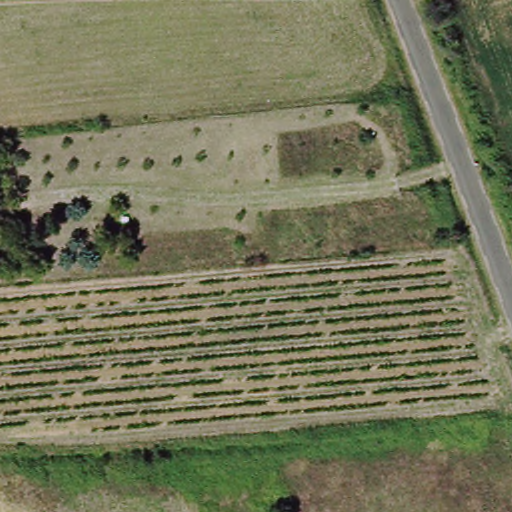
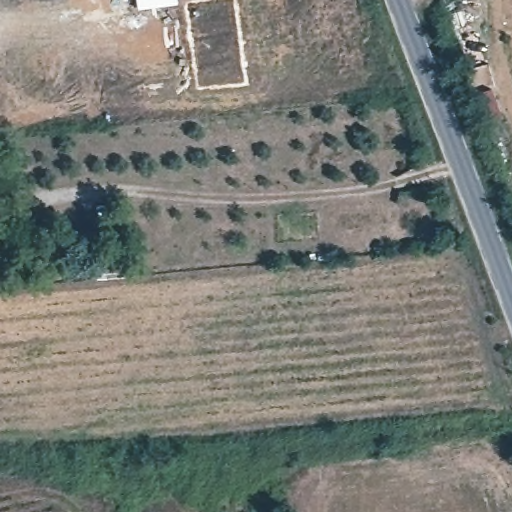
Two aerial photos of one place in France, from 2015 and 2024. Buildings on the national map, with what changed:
new [(135,7),(135,0),(176,0),(176,2),(135,7)]

